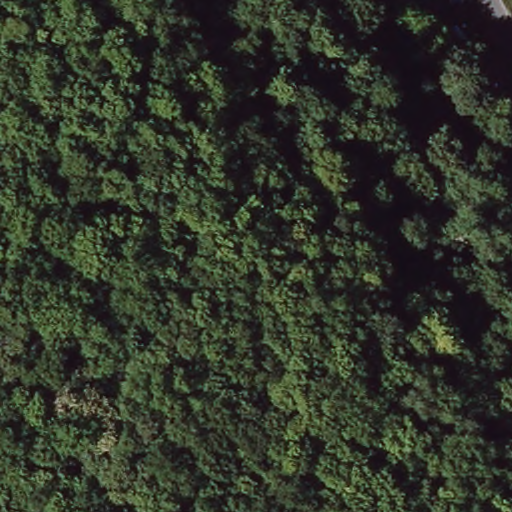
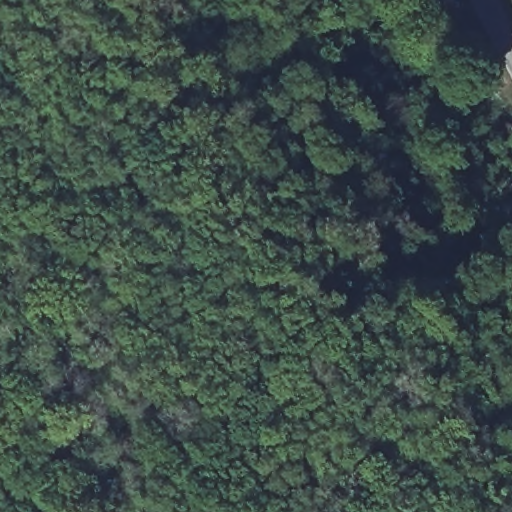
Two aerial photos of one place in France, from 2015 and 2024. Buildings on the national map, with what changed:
unchanged [(464,75),(486,66),(498,91),(477,100),(464,75)]

